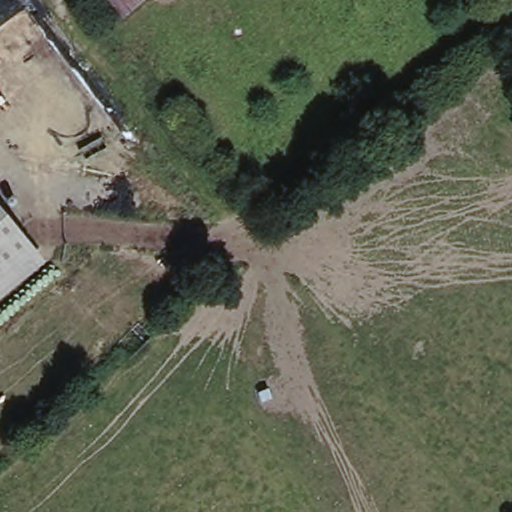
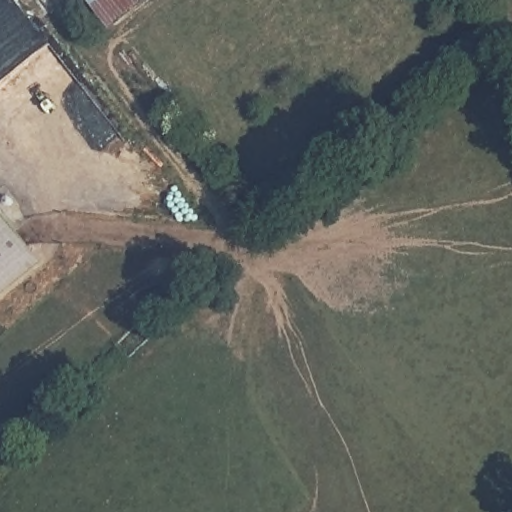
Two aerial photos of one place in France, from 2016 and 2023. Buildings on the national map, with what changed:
unchanged [(85,0),(142,0),(108,30),(85,0)]
unchanged [(45,263),(0,301),(0,209),(45,263)]

